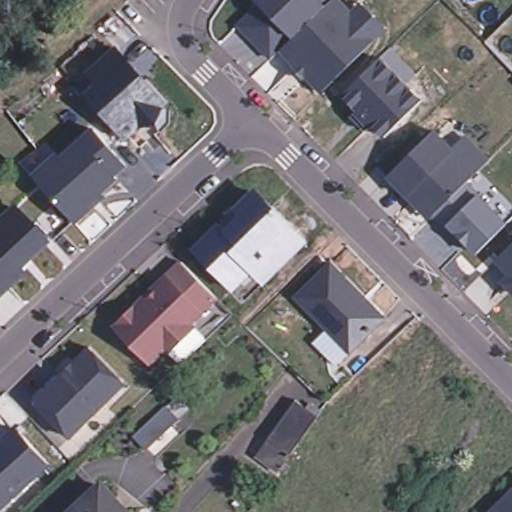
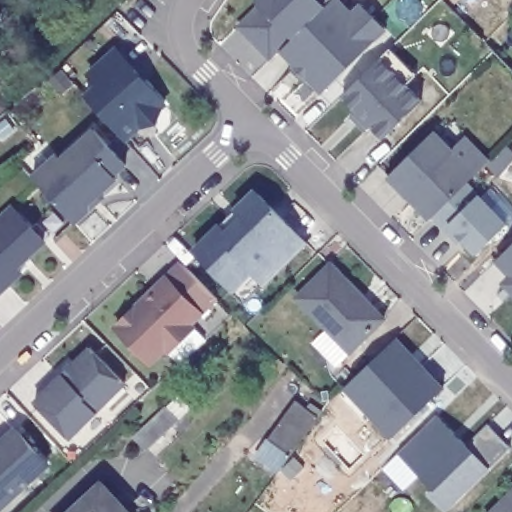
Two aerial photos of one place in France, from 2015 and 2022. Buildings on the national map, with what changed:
unchanged [(262,5),(257,0),(341,0),(351,11),(359,5),(386,30),(323,91),(308,79),(303,80),(294,72),(296,67),(280,50),(271,59),(241,26),(262,5)]
unchanged [(382,135),(370,122),(368,125),(353,110),(355,107),(340,92),(377,55),(388,45),(414,72),(404,82),(419,99),(382,135)]
unchanged [(95,86),(88,72),(117,50),(169,102),(129,142),(85,96),(95,86)]
unchanged [(87,208),(73,221),(39,184),(30,173),(54,150),(59,155),(91,126),(124,162),(113,173),(115,176),(98,191),(102,195),(87,208)]
unchanged [(434,131),(453,147),(469,135),(491,161),(468,183),(479,195),(509,225),(479,252),(464,238),(459,242),(431,219),(389,177),(434,131)]
unchanged [(256,187),(310,242),(266,287),(253,276),(234,293),(195,250),(256,187)]
unchanged [(44,239),(18,264),(25,271),(0,295),(0,218),(13,206),(44,239)]
unchanged [(509,275),(496,261),(512,245),(512,293),(503,281),(509,275)]
unchanged [(152,285),(156,289),(166,279),(163,275),(179,259),(214,295),(188,321),(191,325),(167,348),(163,345),(148,360),(113,323),(152,285)]
unchanged [(315,338),(329,325),(298,293),(333,260),(387,315),(368,333),(363,327),(348,342),(353,347),(352,348),(338,362),(315,338)]
new [(393,335),(409,352),(402,359),(408,365),(415,359),(440,385),(388,434),(369,413),(379,404),(353,376),(343,386),(341,385),(393,335)]
unchanged [(123,380),(68,434),(33,398),(60,371),(63,373),(73,362),(71,360),(88,345),(123,380)]
unchanged [(259,451),(271,434),(298,396),(309,405),(313,398),(324,406),(320,413),(293,451),(281,467),(259,451)]
unchanged [(141,449),(128,435),(161,403),(174,417),(141,449)]
new [(434,413),(462,442),(484,420),(507,445),(442,508),(424,490),(429,485),(396,450),(434,413)]
unchanged [(51,469),(2,512),(0,512),(0,438),(15,425),(51,469)]
unchanged [(126,512),(70,512),(98,484),(126,512)]
unchanged [(495,512),(512,495),(512,512),(495,512)]

